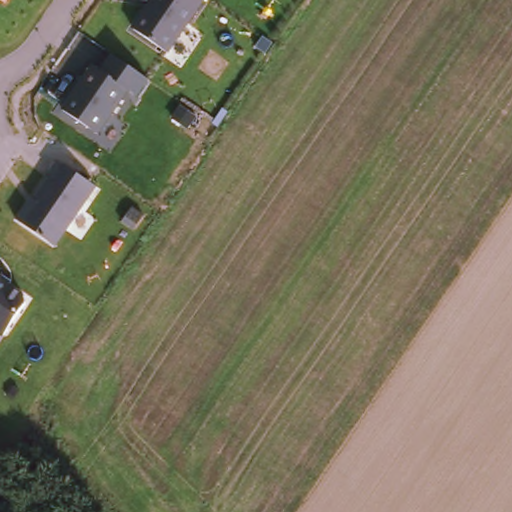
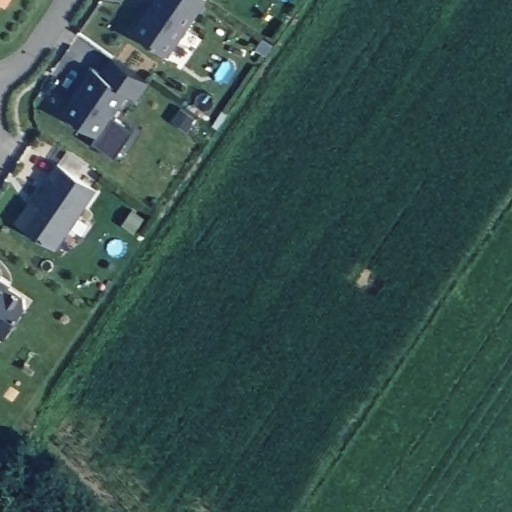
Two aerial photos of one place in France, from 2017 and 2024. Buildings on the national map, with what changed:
unchanged [(6,3),(1,0),(8,0),(6,3)]
unchanged [(208,1),(168,58),(134,35),(146,17),(148,18),(154,10),(153,8),(158,0),(207,0),(208,1)]
unchanged [(139,84),(109,129),(74,105),(105,61),(139,84)]
unchanged [(50,174),(59,161),(97,187),(55,247),(18,221),(29,204),(33,199),(35,201),(53,176),(50,174)]
unchanged [(5,268),(3,270),(13,277),(14,276),(29,287),(31,294),(0,339),(0,265),(5,268)]

